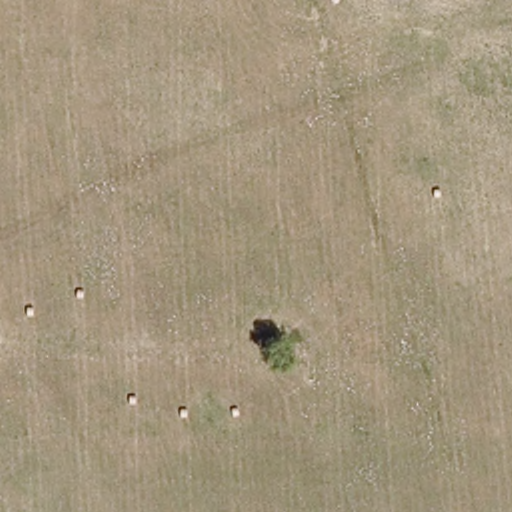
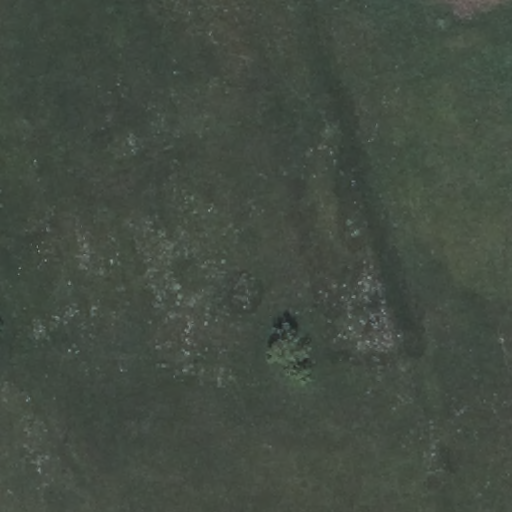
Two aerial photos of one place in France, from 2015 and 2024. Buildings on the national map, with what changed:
unchanged [(311,365),(277,364),(277,329),(312,332),(311,365)]

